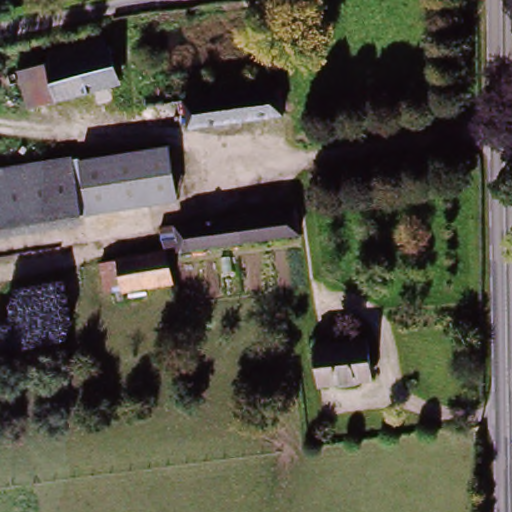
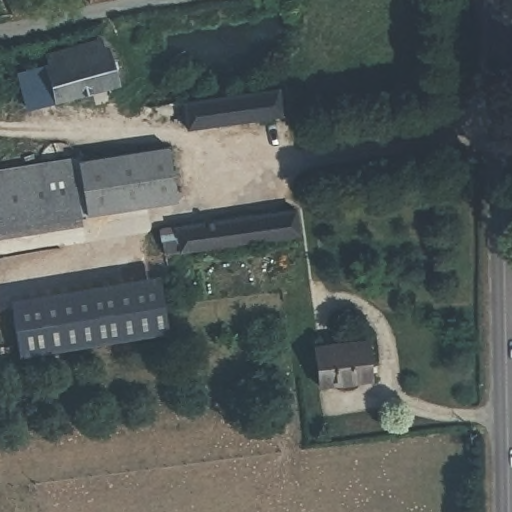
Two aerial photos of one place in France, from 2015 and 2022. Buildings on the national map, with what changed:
unchanged [(18,92),(11,74),(42,65),(39,51),(100,34),(104,48),(116,85),(49,101),(22,108),(18,92)]
unchanged [(182,105),(269,93),(272,119),(185,130),(182,105)]
unchanged [(167,139),(181,191),(90,212),(77,161),(167,139)]
unchanged [(83,213),(0,234),(0,175),(69,158),(83,213)]
unchanged [(160,222),(292,204),(296,236),(165,253),(160,222)]
demolished [(169,285),(120,291),(115,259),(165,253),(169,285)]
new [(159,275),(168,332),(20,357),(10,299),(159,275)]
unchanged [(367,338),(373,374),(317,384),(311,346),(367,338)]

